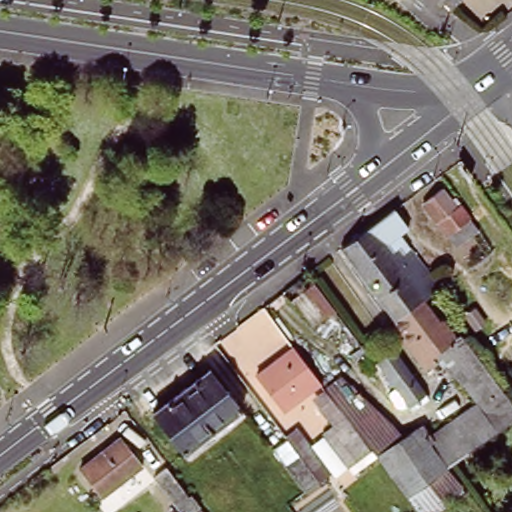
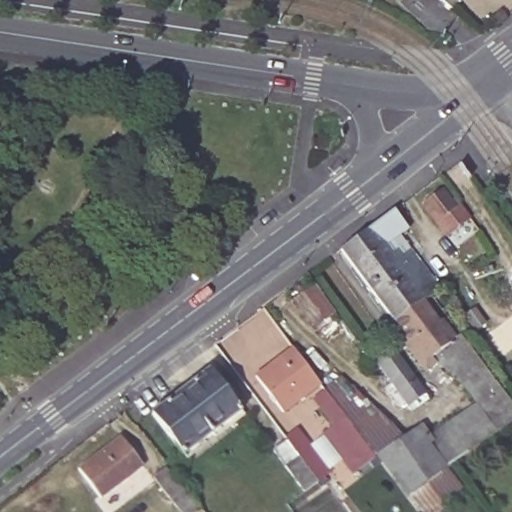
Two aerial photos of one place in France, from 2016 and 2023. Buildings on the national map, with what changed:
unchanged [(450,5),(445,0),(454,0),(454,1),(455,0),(459,0),(465,5),(458,12),(450,5)]
unchanged [(422,204),(440,189),(454,207),(457,205),(475,230),(453,247),(422,204)]
unchanged [(332,427),(319,403),(355,376),(399,434),(420,421),(428,433),(467,402),(435,360),(426,366),(345,252),(402,207),(417,235),(404,247),(512,400),(512,420),(450,469),(462,492),(433,512),(416,512),(370,460),(351,474),(320,436),(332,427)]
unchanged [(392,343),(428,391),(410,404),(373,356),(392,343)]
unchanged [(280,411),(255,373),(293,347),(320,383),(280,411)]
unchanged [(240,410),(182,453),(153,413),(212,369),(240,410)]
unchanged [(298,429),(330,471),(317,481),(302,492),(272,449),(285,439),(298,429)]
unchanged [(141,465),(100,498),(77,469),(118,437),(141,465)]
unchanged [(162,466),(185,494),(188,492),(197,503),(185,512),(179,512),(150,476),(162,466)]

